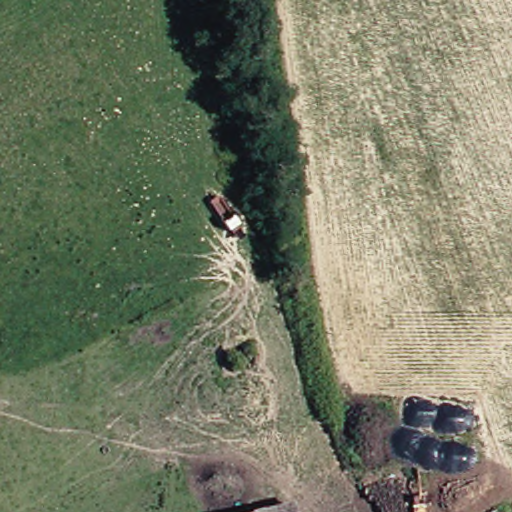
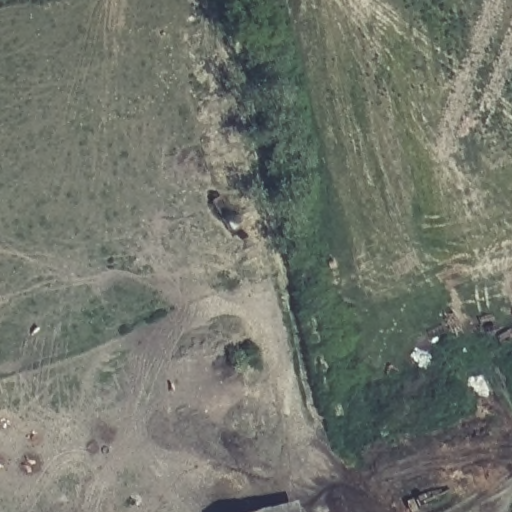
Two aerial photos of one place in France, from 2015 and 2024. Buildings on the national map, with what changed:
unchanged [(298,512),(270,512),(295,504),(296,508),(298,512)]

